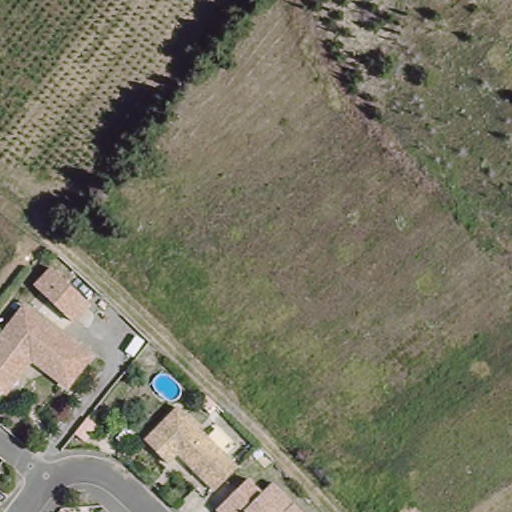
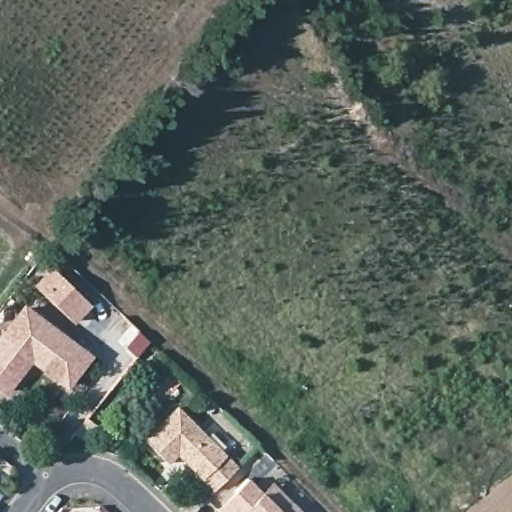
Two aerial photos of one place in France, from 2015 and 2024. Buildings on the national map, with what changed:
unchanged [(91,302),(74,320),(37,285),(55,267),(91,302)]
unchanged [(64,382),(34,358),(20,360),(0,384),(0,333),(24,302),(88,352),(64,382)]
unchanged [(237,466),(213,490),(176,452),(167,462),(144,439),(177,406),(237,466)]
unchanged [(215,508),(233,491),(246,477),(260,491),(260,492),(271,481),(292,502),(302,512),(219,512),(215,508)]

